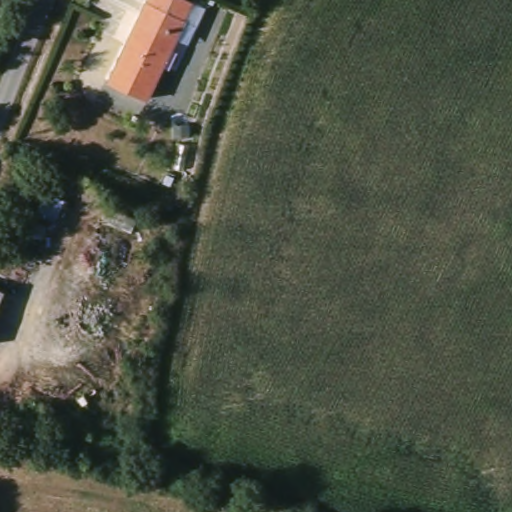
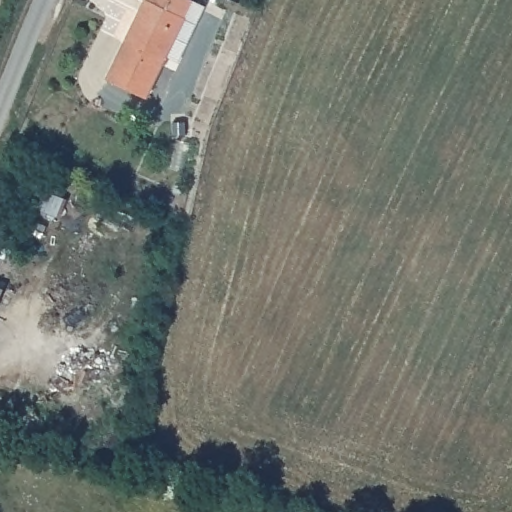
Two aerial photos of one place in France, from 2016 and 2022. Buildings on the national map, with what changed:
unchanged [(105,97),(140,14),(147,0),(158,0),(193,16),(184,34),(147,119),(105,97)]
unchanged [(3,289),(0,296),(0,288),(3,289)]

